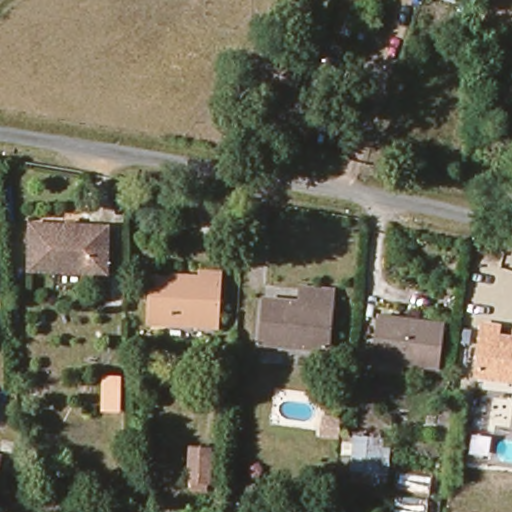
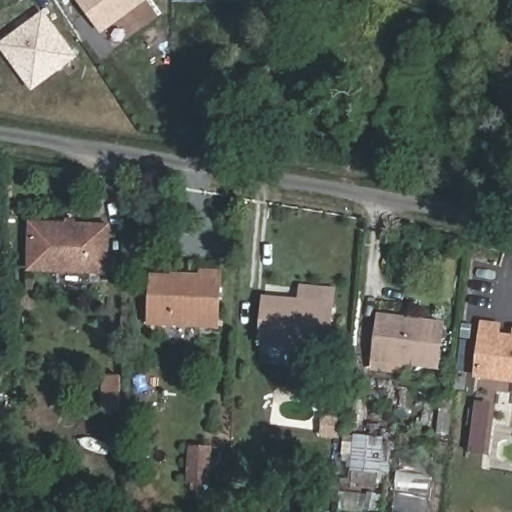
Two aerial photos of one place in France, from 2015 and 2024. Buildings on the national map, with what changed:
new [(97,18),(91,22),(75,0),(150,0),(107,31),(97,18)]
new [(32,91),(0,48),(0,43),(44,11),(77,57),(32,91)]
unchanged [(27,269),(27,223),(102,226),(100,272),(27,269)]
unchanged [(146,328),(146,282),(196,284),(196,274),(215,275),(213,332),(146,328)]
unchanged [(261,346),(265,301),(303,306),(304,292),(334,296),(329,353),(261,346)]
unchanged [(369,363),(377,320),(438,331),(431,373),(401,368),(369,363)]
unchanged [(501,326),(500,338),(512,339),(512,386),(472,380),(477,323),(501,326)]
unchanged [(121,412),(100,411),(100,373),(122,375),(121,412)]
unchanged [(364,436),(377,435),(379,442),(389,444),(386,468),(378,467),(377,485),(346,482),(354,414),(365,412),(364,436)]
unchanged [(190,482),(195,452),(210,454),(206,486),(190,482)]
new [(228,494),(239,495),(238,512),(227,512),(228,494)]

